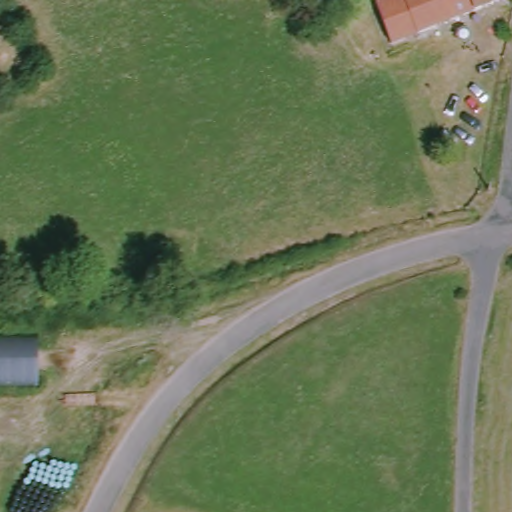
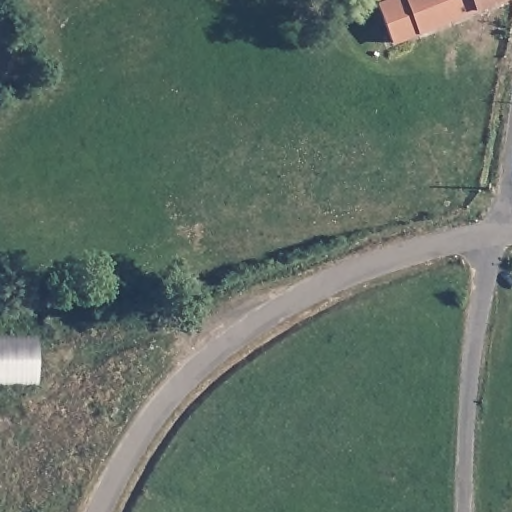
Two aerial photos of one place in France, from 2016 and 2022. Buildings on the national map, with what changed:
unchanged [(387,47),(379,23),(370,24),(364,19),(361,13),(364,7),(371,4),(370,0),(512,0),(512,1),(387,47)]
unchanged [(0,384),(0,333),(39,332),(36,384),(0,384)]

